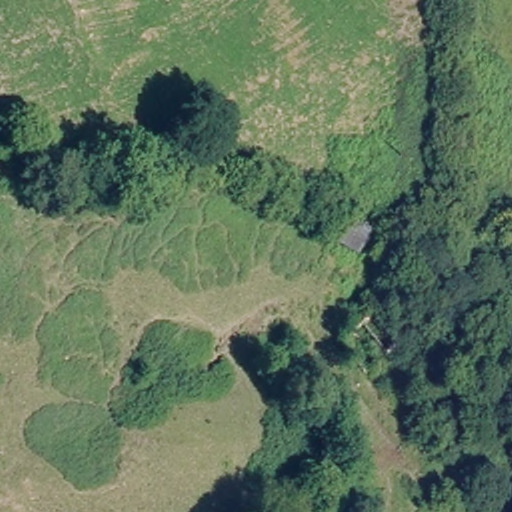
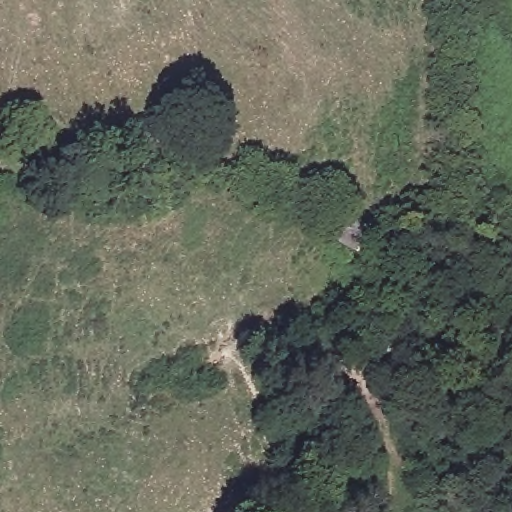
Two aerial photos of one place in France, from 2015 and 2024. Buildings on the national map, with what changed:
unchanged [(386,236),(376,266),(350,255),(357,224),(386,236)]
unchanged [(368,373),(342,348),(377,309),(406,337),(368,373)]

